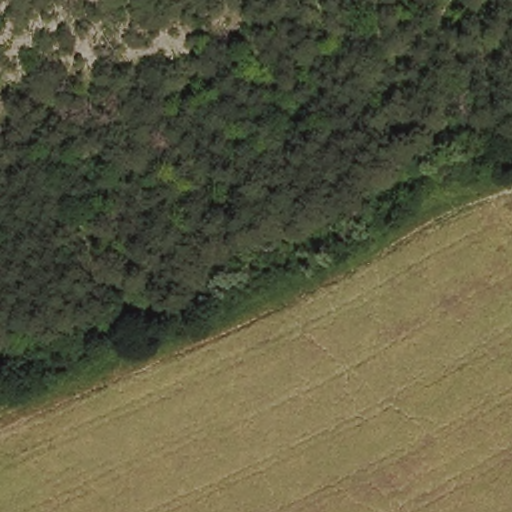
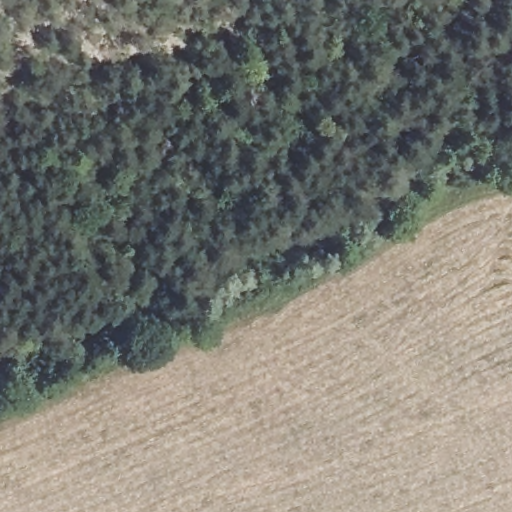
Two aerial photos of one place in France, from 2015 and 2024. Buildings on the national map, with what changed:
[]

